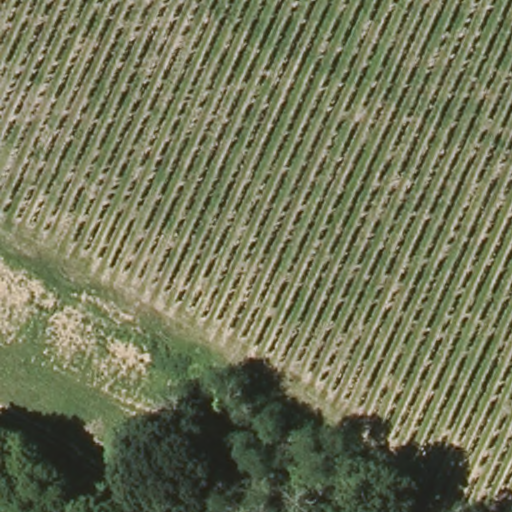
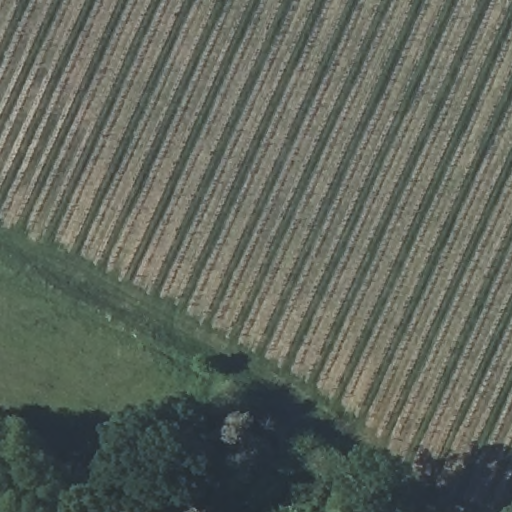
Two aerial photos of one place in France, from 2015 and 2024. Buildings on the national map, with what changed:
[]

